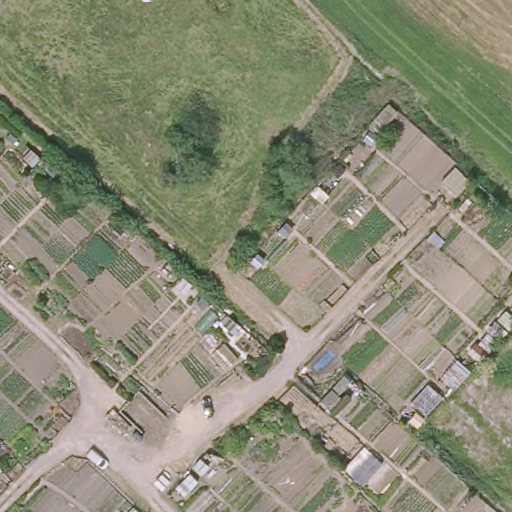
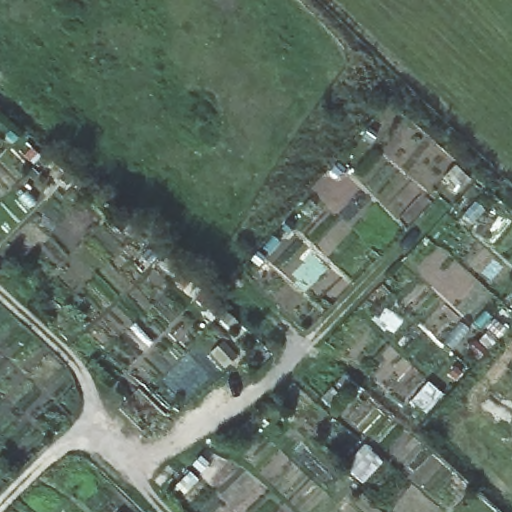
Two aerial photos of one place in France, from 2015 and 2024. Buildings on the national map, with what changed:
[]

